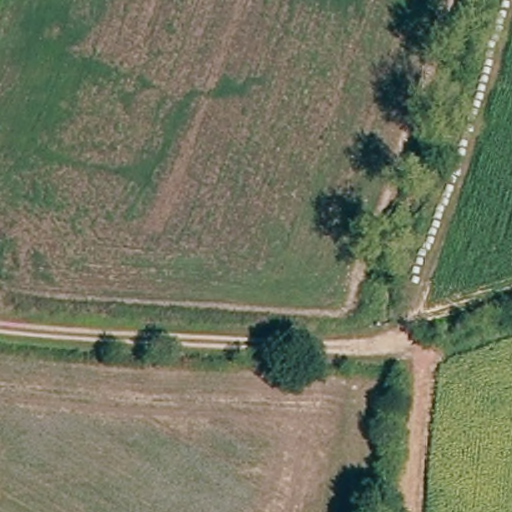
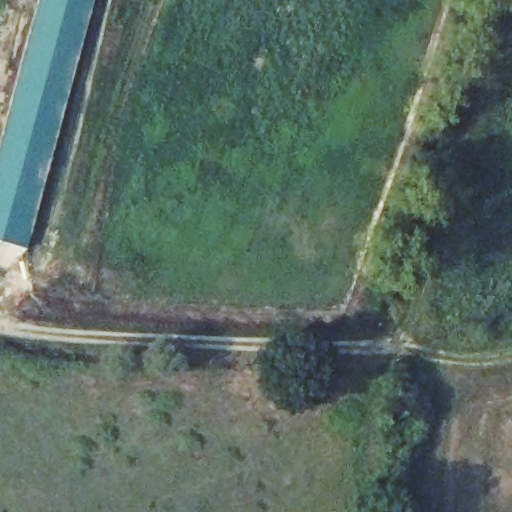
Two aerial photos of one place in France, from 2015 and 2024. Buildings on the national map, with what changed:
new [(26,250),(0,242),(0,149),(40,0),(92,0),(26,250)]

